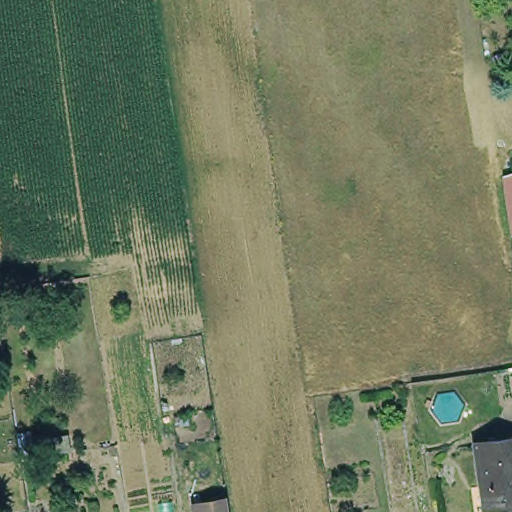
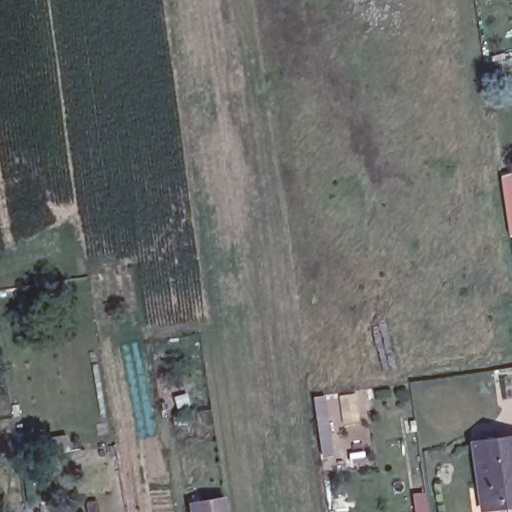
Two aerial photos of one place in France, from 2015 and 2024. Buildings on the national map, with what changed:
unchanged [(512,155),(512,168),(508,156),(512,155)]
unchanged [(512,176),(512,240),(503,240),(495,181),(512,176)]
unchanged [(481,504),(477,483),(471,438),(512,432),(512,500),(497,502),(486,504),(481,504)]
unchanged [(198,512),(195,494),(227,490),(230,512),(198,512)]

